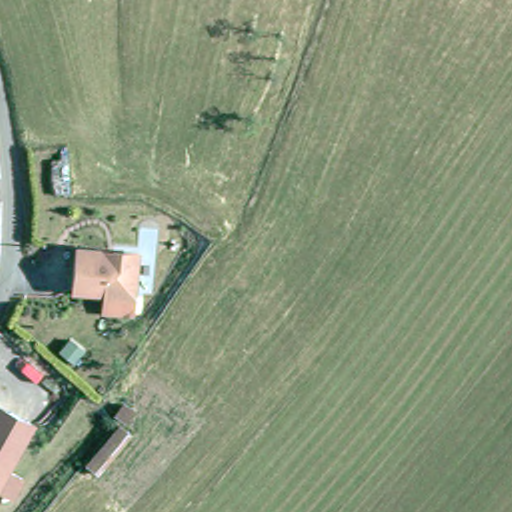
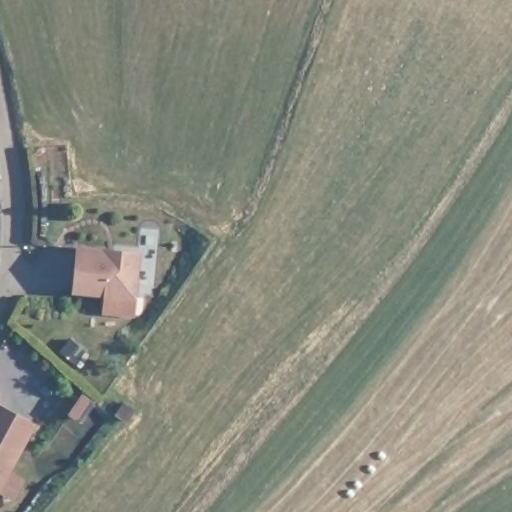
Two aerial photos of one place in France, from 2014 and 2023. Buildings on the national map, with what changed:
unchanged [(71,240),(133,248),(127,310),(97,306),(100,288),(66,284),(71,240)]
unchanged [(112,416),(120,405),(130,412),(120,423),(112,416)]
unchanged [(0,469),(0,408),(26,424),(0,469)]
unchanged [(116,428),(126,438),(91,476),(81,466),(116,428)]
unchanged [(0,496),(0,470),(15,479),(3,498),(0,496)]

